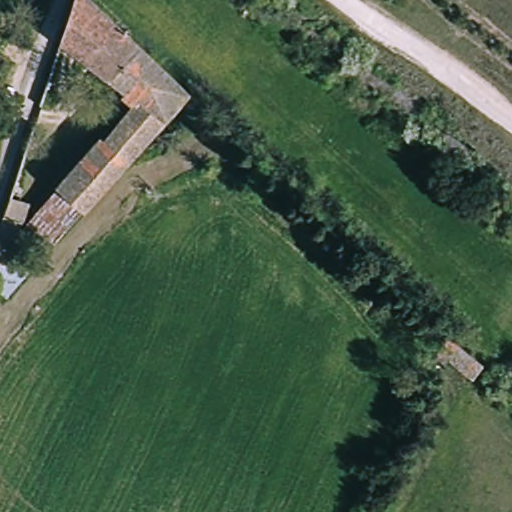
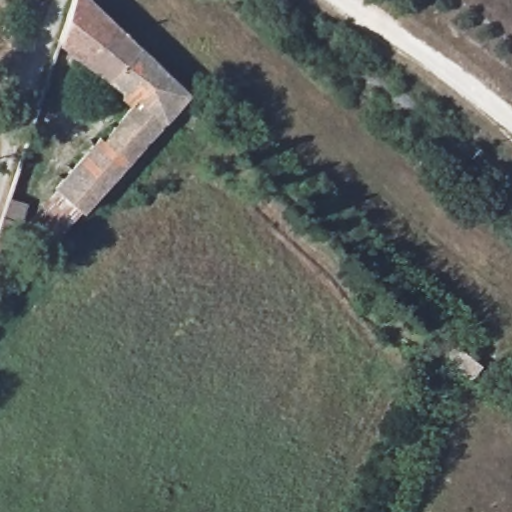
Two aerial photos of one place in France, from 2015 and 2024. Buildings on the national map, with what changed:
unchanged [(56,43),(71,0),(81,0),(137,49),(103,83),(56,43)]
unchanged [(127,110),(115,97),(117,94),(103,83),(137,49),(145,57),(183,95),(150,131),(127,110)]
unchanged [(99,144),(127,110),(150,131),(120,164),(99,144)]
unchanged [(95,140),(99,144),(120,164),(76,212),(51,190),(95,140)]
unchanged [(51,190),(76,212),(41,250),(21,231),(23,228),(51,190)]
unchanged [(15,225),(0,264),(0,219),(15,225)]
unchanged [(470,382),(447,363),(441,367),(433,362),(446,335),(481,367),(470,382)]

